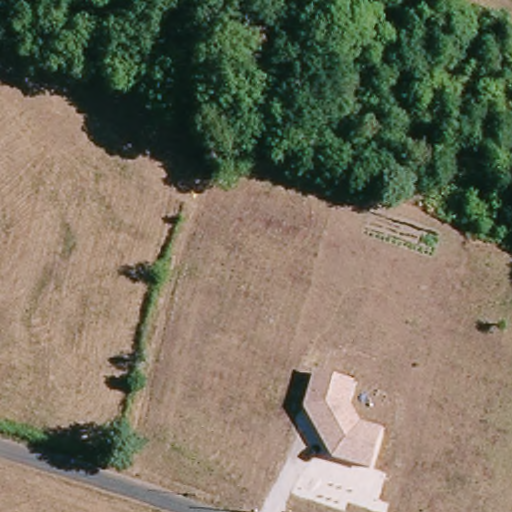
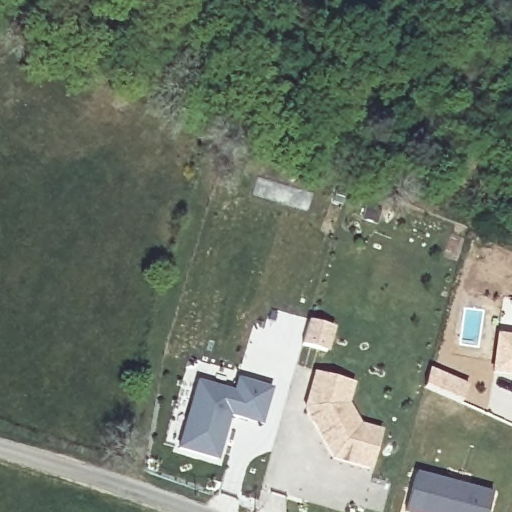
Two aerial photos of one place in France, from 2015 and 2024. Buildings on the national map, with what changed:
new [(308,319),(333,326),(326,350),(301,343),(308,319)]
new [(512,334),(512,379),(490,373),(497,331),(512,334)]
new [(429,367),(468,385),(461,401),(422,385),(429,367)]
unchanged [(355,381),(350,401),(362,423),(382,428),(370,470),(333,460),(303,406),(315,369),(355,381)]
new [(179,448),(198,380),(235,390),(238,377),(275,388),(264,424),(232,414),(220,459),(179,448)]
new [(457,481),(494,490),(488,512),(403,512),(416,468),(457,481)]

